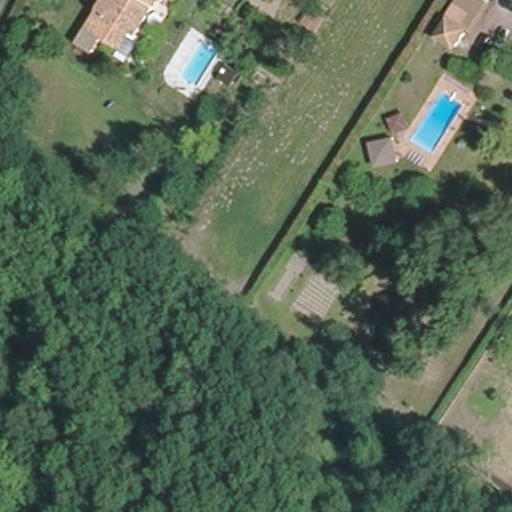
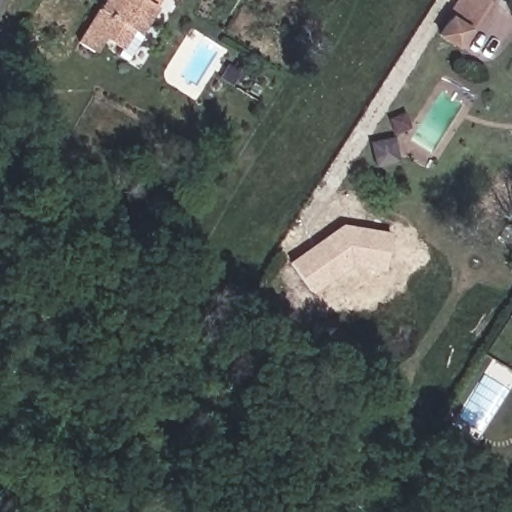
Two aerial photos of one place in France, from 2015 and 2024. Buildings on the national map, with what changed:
unchanged [(137,26),(124,49),(87,31),(104,0),(155,0),(141,26),(137,26)]
unchanged [(454,42),(439,34),(451,14),(447,11),(454,0),(487,0),(472,25),(466,23),(454,42)]
new [(400,161),(376,166),(371,142),(394,137),(400,161)]
new [(342,224),(390,232),(384,270),(352,265),(312,293),(290,261),(342,224)]

